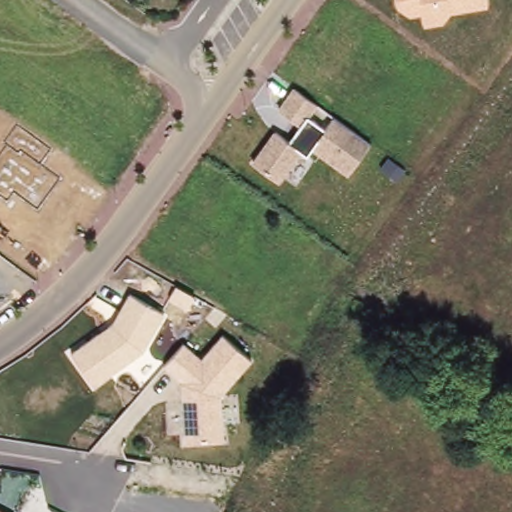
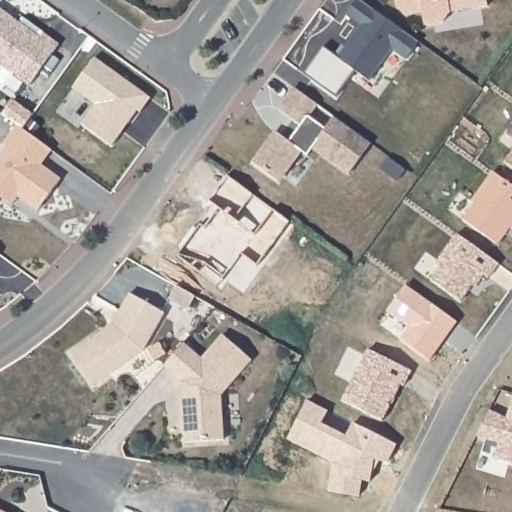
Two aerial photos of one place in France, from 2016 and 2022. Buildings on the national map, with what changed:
new [(303,74),(322,47),(337,57),(360,25),(346,14),(356,0),(359,0),(418,42),(405,59),(390,49),(368,80),(353,69),(335,97),(303,74)]
unchanged [(423,14),(408,15),(396,4),(396,0),(487,0),(487,7),(446,14),(447,23),(425,26),(423,14)]
new [(41,39),(45,34),(60,45),(30,87),(0,65),(0,9),(41,39)]
new [(96,58),(152,98),(142,112),(139,110),(113,146),(83,124),(97,104),(74,88),(96,58)]
unchanged [(251,163),(273,129),(288,142),(301,123),(276,107),(291,85),(369,144),(347,174),(313,150),(307,157),(302,153),(280,184),(251,163)]
new [(8,202),(1,197),(0,198),(0,157),(8,146),(5,143),(18,125),(1,113),(12,98),(32,113),(22,127),(53,150),(42,165),(61,180),(38,211),(19,197),(12,205),(8,202)]
new [(512,167),(505,162),(512,153),(512,167)]
new [(470,199),(491,170),(512,186),(512,229),(510,227),(498,244),(461,218),(473,202),(470,199)]
new [(440,267),(435,264),(457,234),(499,264),(488,278),(484,275),(476,287),(473,285),(461,301),(431,280),(440,267)]
new [(443,340),(429,360),(400,340),(409,327),(387,311),(406,285),(454,319),(457,322),(443,340)]
unchanged [(70,354),(112,324),(129,294),(163,312),(143,352),(92,386),(70,354)]
unchanged [(203,360),(224,335),(253,360),(222,396),(225,440),(187,443),(185,406),(190,400),(189,387),(183,382),(184,381),(166,365),(185,344),(203,360)]
new [(368,349),(411,371),(404,386),(400,385),(394,399),(388,403),(390,406),(383,421),(342,400),(368,349)]
new [(507,418),(512,402),(512,465),(494,459),(499,444),(476,437),(488,413),(507,418)]
unchanged [(0,512),(0,509),(4,512),(0,512)]

